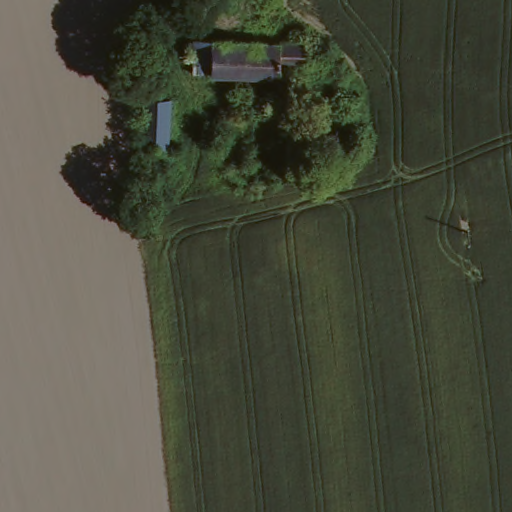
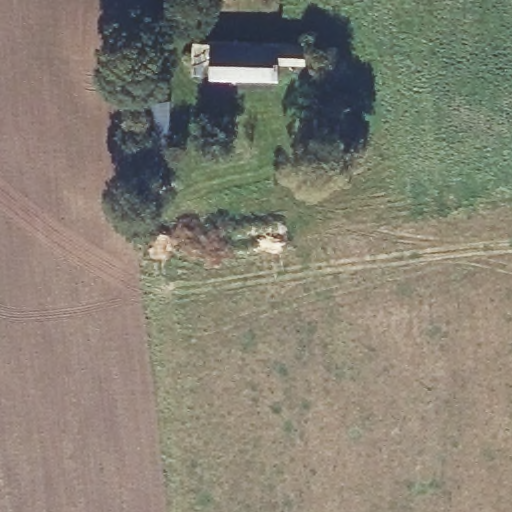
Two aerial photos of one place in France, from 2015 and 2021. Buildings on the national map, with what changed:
unchanged [(191,80),(192,55),(202,55),(205,46),(277,49),(282,49),(303,49),(303,69),(276,69),(276,81),(191,80)]
unchanged [(157,87),(157,99),(172,99),(171,147),(150,147),(149,87),(157,87)]

